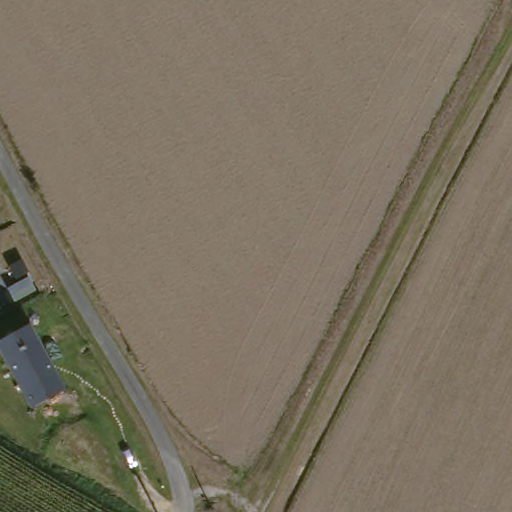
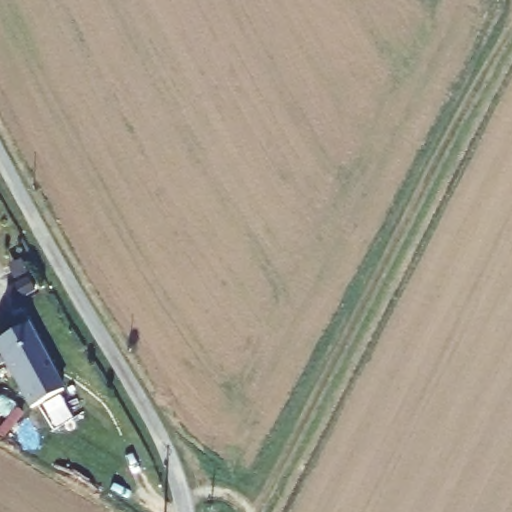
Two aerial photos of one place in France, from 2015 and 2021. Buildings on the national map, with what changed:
unchanged [(27,409),(0,357),(0,338),(27,324),(64,391),(27,409)]

